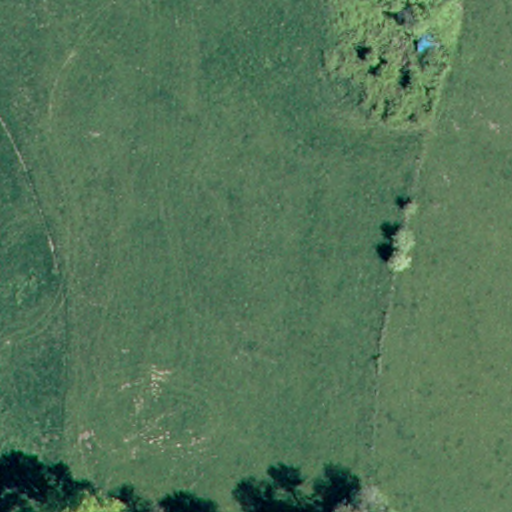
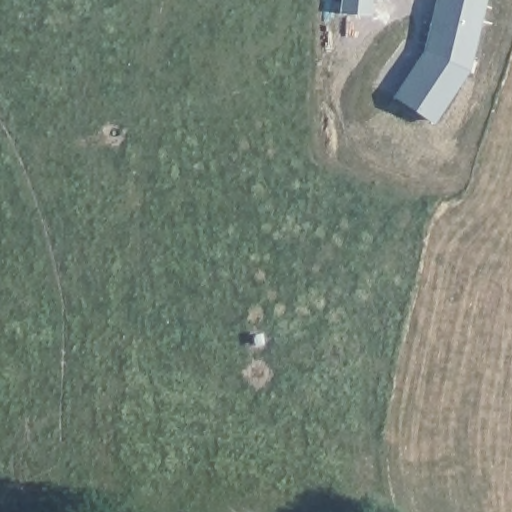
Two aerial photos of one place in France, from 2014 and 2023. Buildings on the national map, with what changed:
new [(370,0),(368,14),(342,11),(343,0),(370,0)]
new [(436,0),(477,0),(481,1),(465,68),(430,122),(393,98),(423,52),(436,0)]

